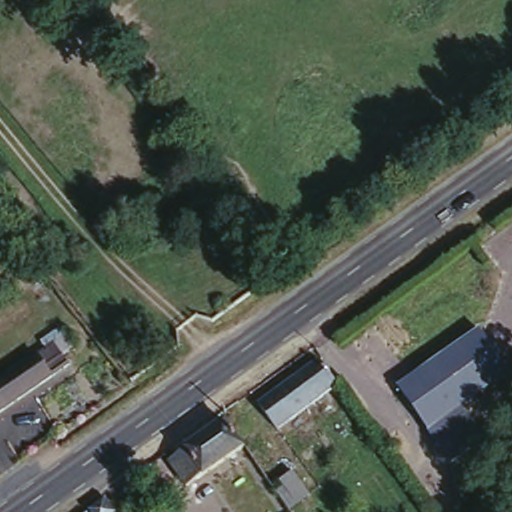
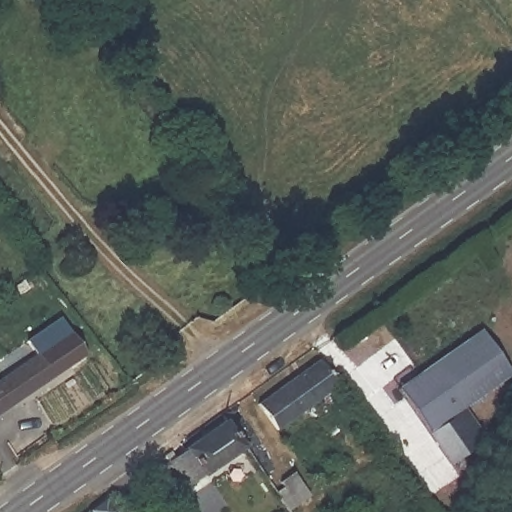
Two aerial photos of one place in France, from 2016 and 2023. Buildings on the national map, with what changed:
unchanged [(397,390),(478,330),(507,370),(460,406),(483,438),(451,462),(397,390)]
unchanged [(0,411),(0,381),(57,340),(73,360),(0,411)]
unchanged [(319,356),(337,380),(275,424),(257,400),(319,356)]
unchanged [(222,423),(241,450),(187,489),(167,463),(222,423)]
unchanged [(285,489),(279,483),(292,473),(307,495),(288,511),(277,496),(285,489)]
unchanged [(104,495),(116,512),(79,512),(104,495)]

